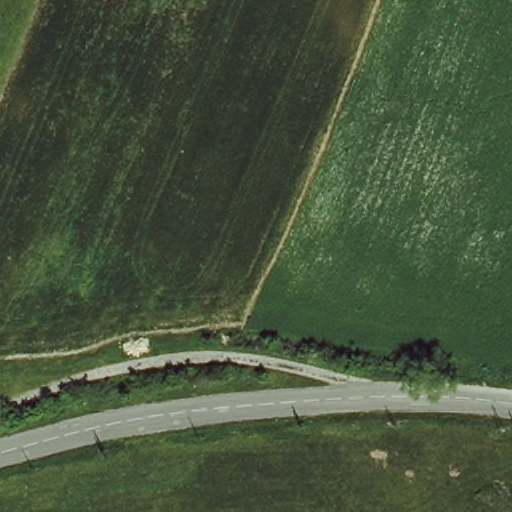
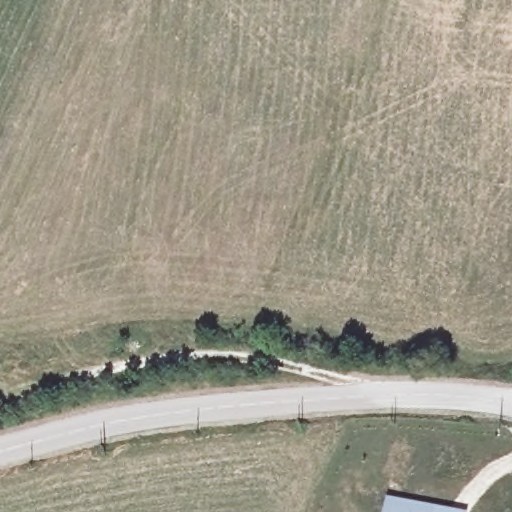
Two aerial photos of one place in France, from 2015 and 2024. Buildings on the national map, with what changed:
new [(385,512),(388,497),(461,512),(385,512)]

